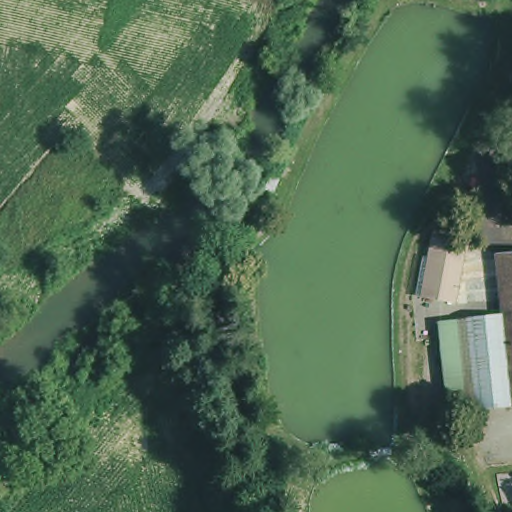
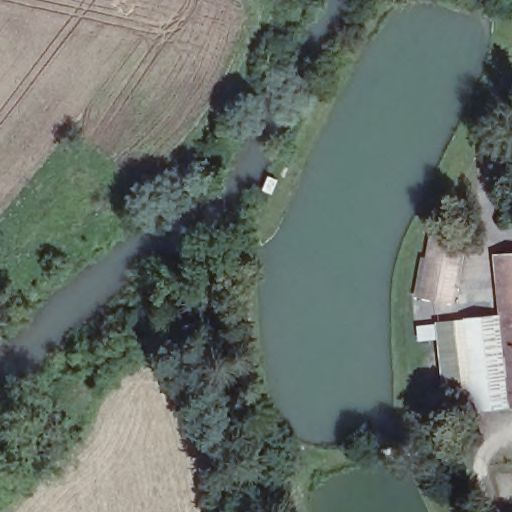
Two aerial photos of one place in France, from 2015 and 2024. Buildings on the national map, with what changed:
unchanged [(425,301),(432,263),(437,239),(470,245),(466,270),(458,307),(425,301)]
unchanged [(434,325),(496,318),(492,258),(512,257),(512,409),(440,416),(434,325)]

